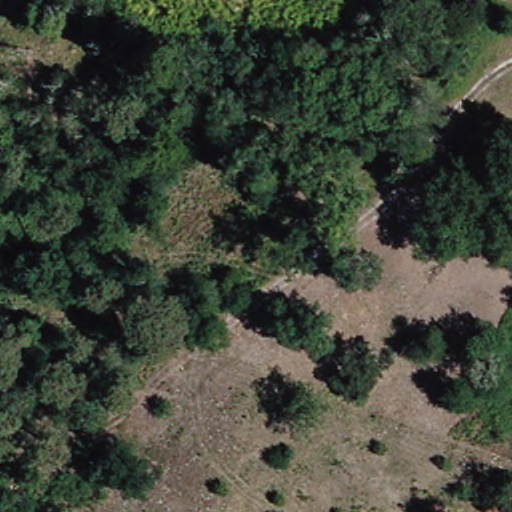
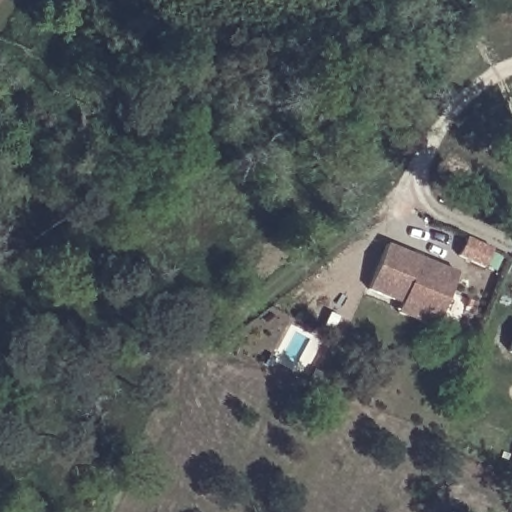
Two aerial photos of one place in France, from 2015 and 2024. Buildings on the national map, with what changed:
new [(491,267),(465,255),(474,237),(500,249),(491,267)]
new [(405,311),(409,302),(375,288),(393,244),(464,272),(446,318),(442,326),(405,311)]
new [(510,352),(512,345),(512,352),(510,352)]

